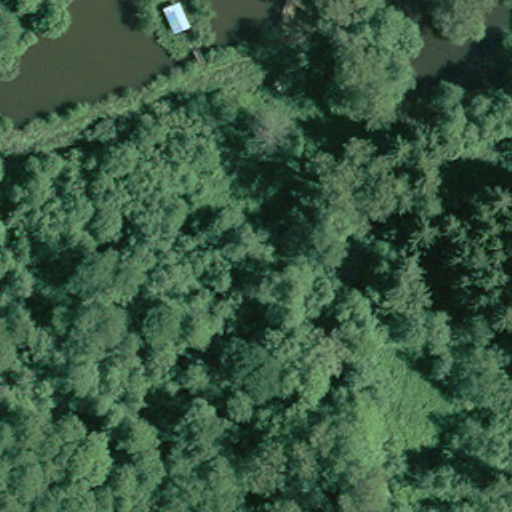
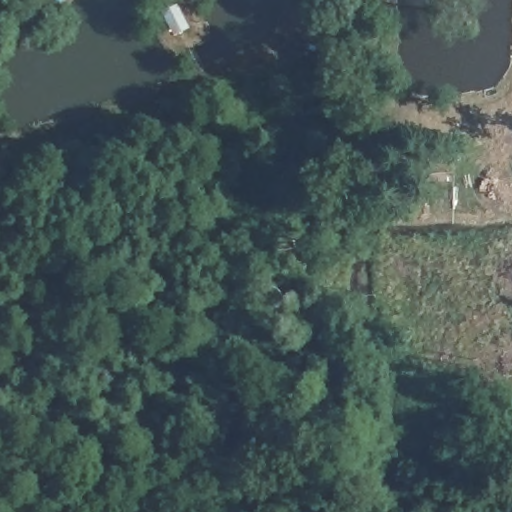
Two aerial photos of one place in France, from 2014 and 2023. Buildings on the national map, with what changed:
unchanged [(185,3),(195,29),(173,37),(162,13),(185,3)]

